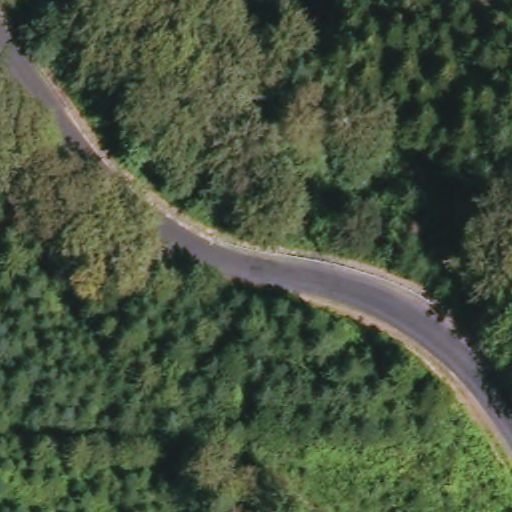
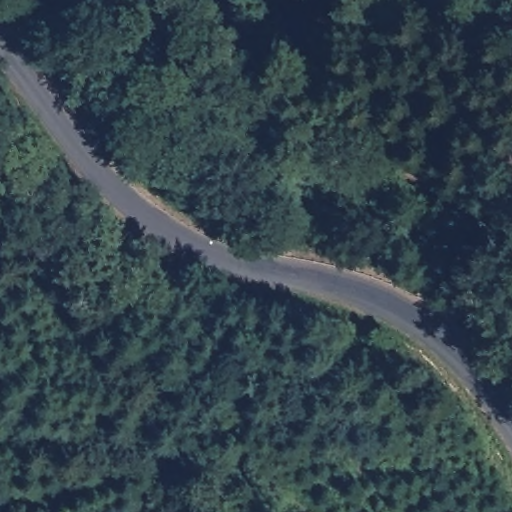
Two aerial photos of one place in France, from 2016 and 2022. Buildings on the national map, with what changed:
[]

